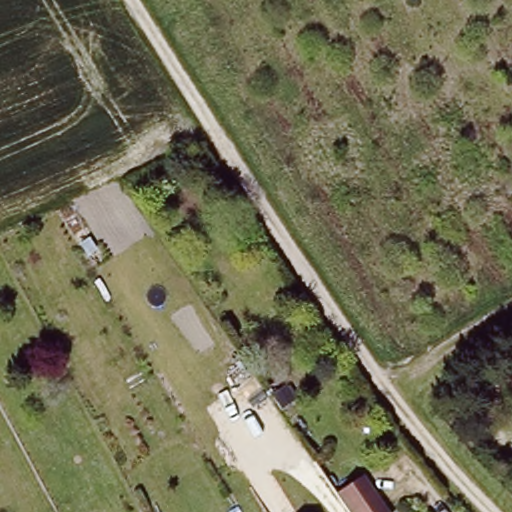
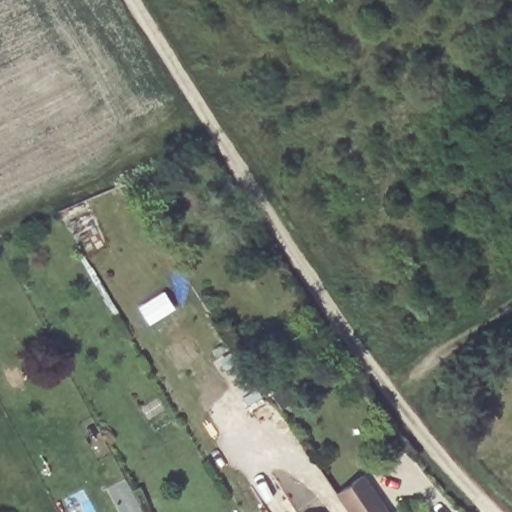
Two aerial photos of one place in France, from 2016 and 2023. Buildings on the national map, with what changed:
unchanged [(357,480),(381,512),(343,512),(334,496),(357,480)]

